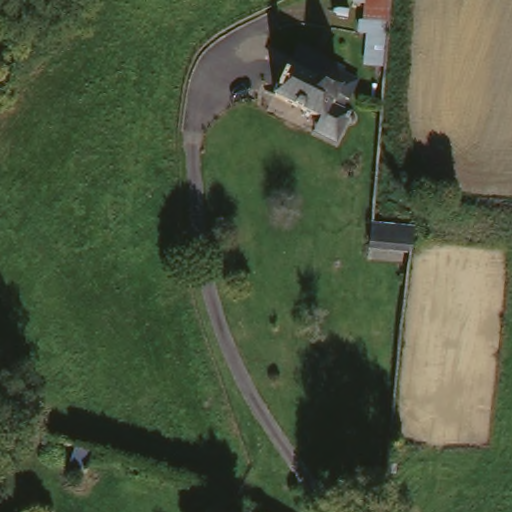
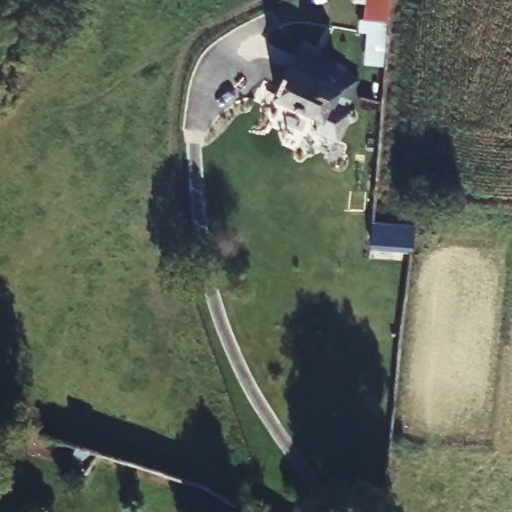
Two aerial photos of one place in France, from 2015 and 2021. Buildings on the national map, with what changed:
unchanged [(389,23),(363,22),(364,0),(390,0),(389,23)]
unchanged [(345,77),(289,71),(297,53),(347,59),(345,77)]
unchanged [(329,116),(328,115),(319,129),(271,106),(286,80),(312,91),(314,87),(339,99),(329,116)]
unchanged [(368,245),(370,216),(412,221),(409,249),(368,245)]
unchanged [(98,455),(91,474),(84,471),(79,448),(98,455)]

